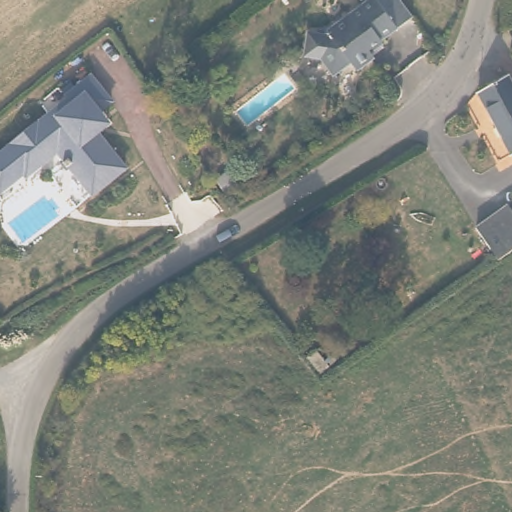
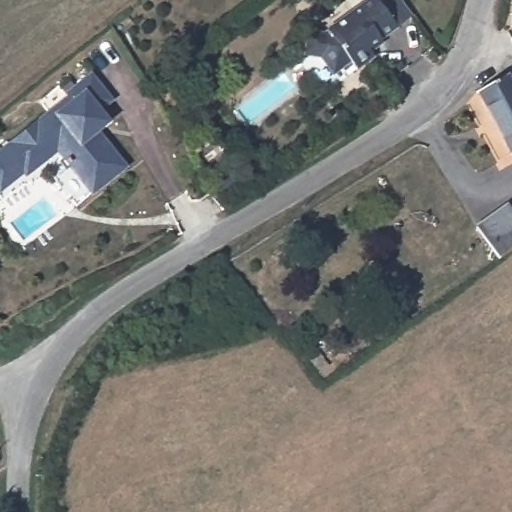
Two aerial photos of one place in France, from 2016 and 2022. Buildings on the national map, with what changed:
unchanged [(370,52),(374,56),(356,70),(350,61),(333,74),(320,57),(307,55),(305,50),(307,35),(311,32),(331,35),(333,25),(367,0),(377,0),(401,0),(412,15),(397,27),(380,40),(383,42),(370,52)]
unchanged [(5,186),(1,182),(0,180),(0,152),(17,138),(15,136),(41,115),(43,117),(73,93),(66,84),(76,76),(81,82),(96,70),(116,95),(104,105),(113,116),(101,126),(130,161),(97,188),(62,145),(30,170),(28,167),(5,186)]
unchanged [(512,82),(512,155),(511,155),(477,91),(507,74),(512,82)]
unchanged [(498,254),(476,222),(508,200),(512,204),(512,245),(498,254)]

